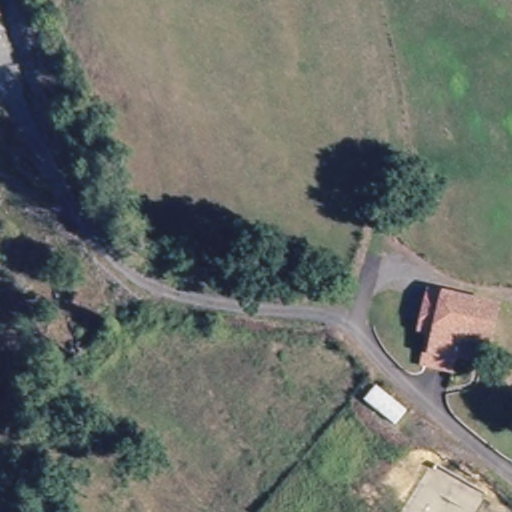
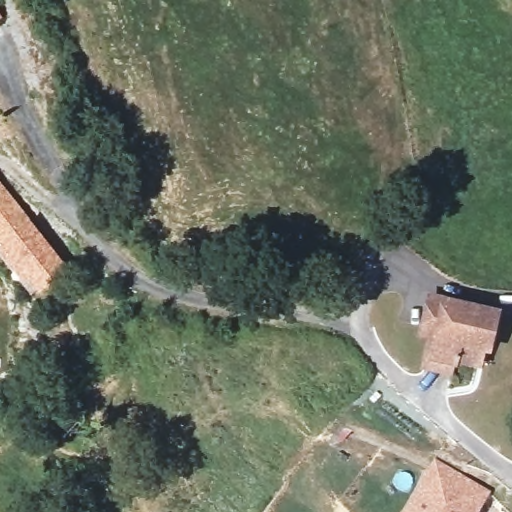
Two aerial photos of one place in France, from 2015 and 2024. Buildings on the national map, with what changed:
new [(71,268),(36,296),(0,255),(0,180),(71,268)]
unchanged [(473,360),(447,352),(442,368),(414,360),(423,330),(414,327),(424,291),(468,304),(487,309),(473,360)]
demolished [(407,409),(393,426),(365,404),(377,387),(407,409)]
new [(479,512),(402,512),(434,457),(491,491),(479,512)]

